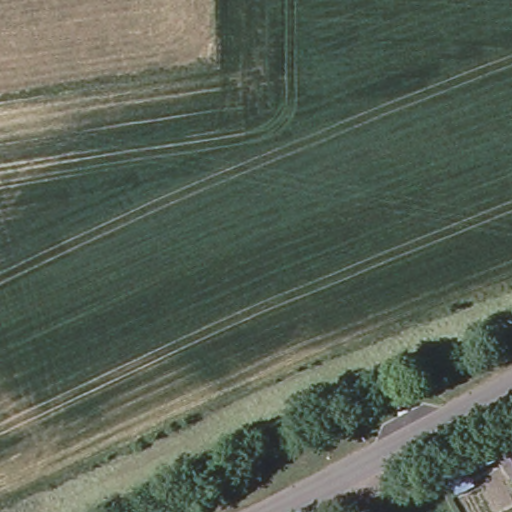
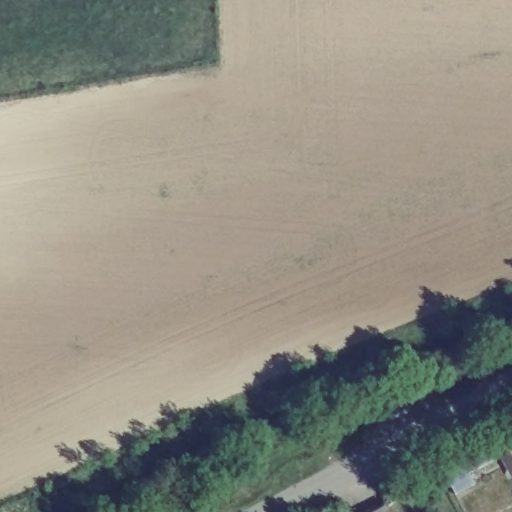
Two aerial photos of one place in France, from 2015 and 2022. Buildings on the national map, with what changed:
unchanged [(512,472),(509,474),(502,459),(512,454),(512,472)]
unchanged [(501,473),(456,497),(448,482),(492,458),(501,473)]

